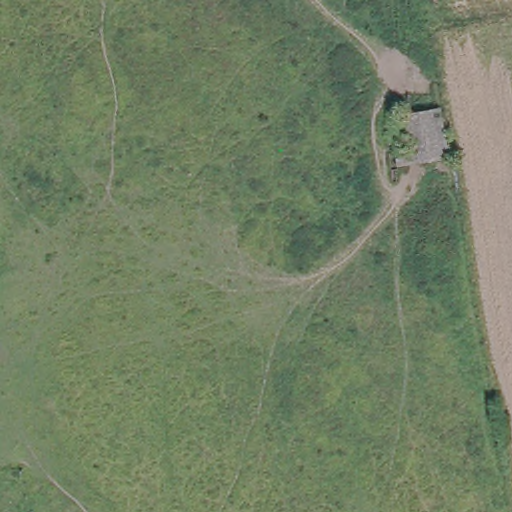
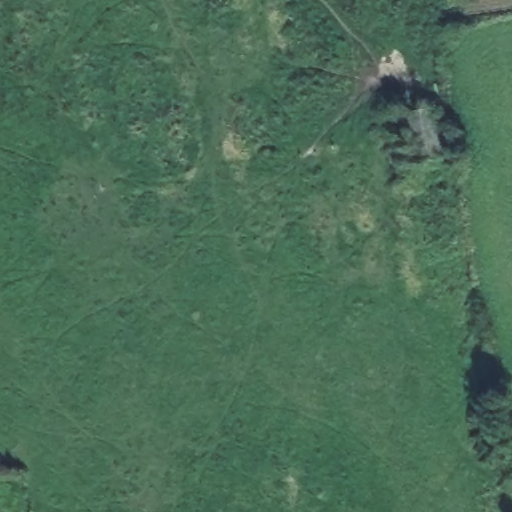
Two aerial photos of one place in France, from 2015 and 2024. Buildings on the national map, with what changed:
unchanged [(396,171),(390,119),(442,109),(450,165),(396,171)]

